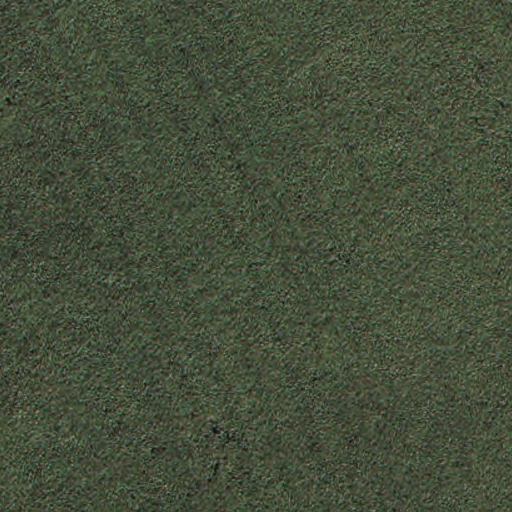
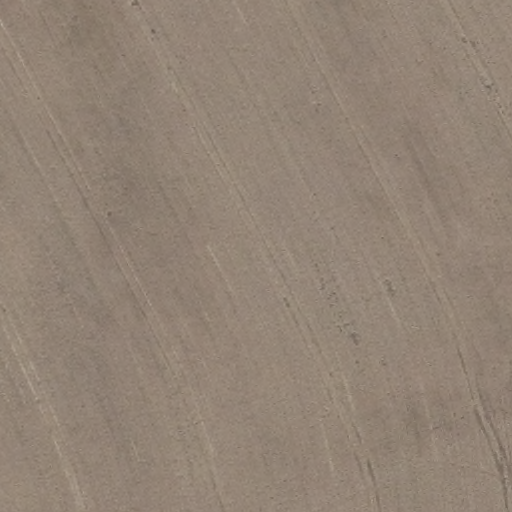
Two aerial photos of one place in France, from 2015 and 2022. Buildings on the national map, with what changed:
[]

